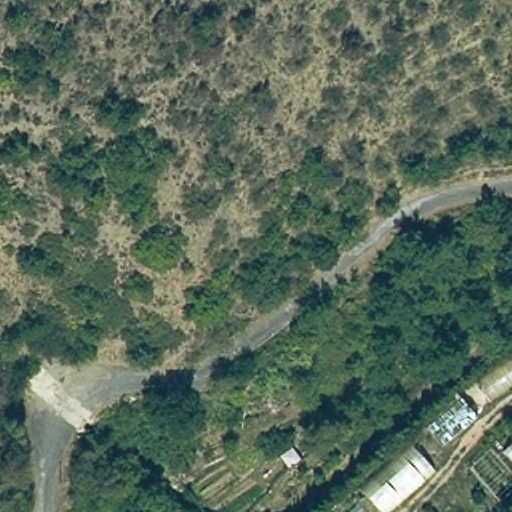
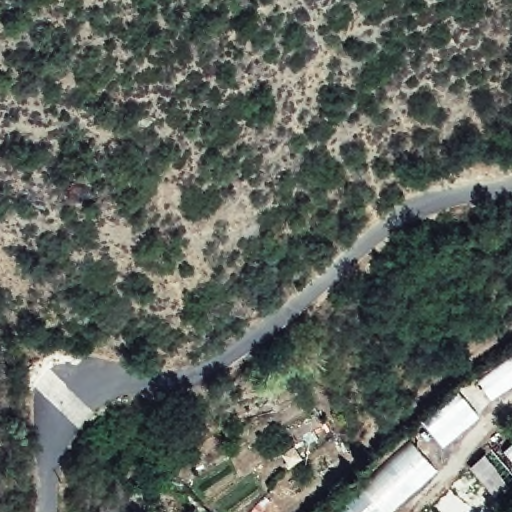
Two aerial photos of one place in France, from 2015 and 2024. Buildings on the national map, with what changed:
unchanged [(421,417),(457,393),(480,421),(441,447),(421,417)]
unchanged [(336,512),(412,444),(434,467),(388,512),(336,512)]
unchanged [(489,444),(500,453),(512,444),(512,491),(497,502),(464,464),(489,444)]

